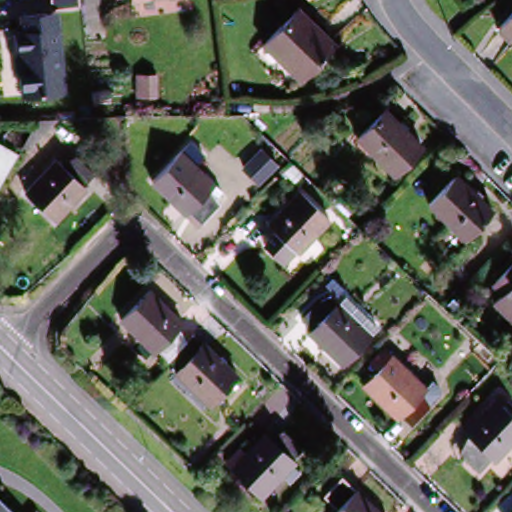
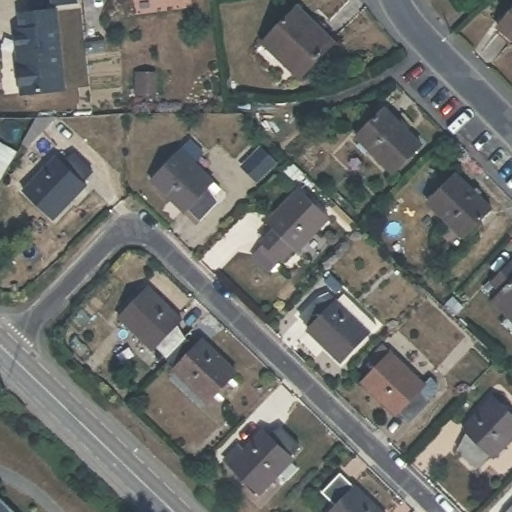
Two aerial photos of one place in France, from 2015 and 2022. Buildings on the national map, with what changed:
unchanged [(140,0),(149,0),(141,1),(140,0)]
unchanged [(268,35),(306,6),(335,45),(298,74),(268,35)]
unchanged [(512,8),(512,36),(498,24),(512,8)]
unchanged [(59,14),(67,93),(26,97),(25,92),(21,88),(20,74),(22,71),(19,35),(26,34),(24,19),(59,14)]
unchanged [(365,135),(389,110),(423,144),(400,169),(365,135)]
unchanged [(7,151),(0,162),(0,147),(7,151)]
unchanged [(221,199),(201,220),(155,174),(182,147),(222,183),(215,192),(221,199)]
unchanged [(69,155),(88,172),(77,182),(84,190),(55,219),(25,192),(54,162),(58,165),(69,155)]
unchanged [(493,209),(466,239),(427,203),(455,172),(493,209)]
unchanged [(283,265),(263,242),(275,231),(270,225),(302,196),(331,223),(301,253),(297,250),(283,265)]
unchanged [(512,323),(492,305),(500,297),(488,286),(509,264),(512,266),(512,323)]
unchanged [(150,346),(144,351),(113,322),(142,292),(172,321),(166,328),(182,343),(166,360),(150,346)]
unchanged [(303,335),(308,328),(297,318),(314,301),(318,304),(328,294),(337,302),(346,293),(378,325),(337,367),(303,335)]
unchanged [(166,360),(182,343),(195,353),(200,348),(234,378),(207,408),(172,377),(178,371),(166,360)]
unchanged [(428,401),(408,423),(397,412),(392,416),(360,385),(390,352),(422,382),(417,391),(428,401)]
unchanged [(512,432),(492,453),(484,447),(471,461),(453,442),(462,432),(457,426),(490,392),(512,414),(512,432)]
unchanged [(284,478),(277,473),(258,490),(231,462),(259,432),(269,438),(279,428),(296,445),(288,455),(298,466),(284,478)]
unchanged [(337,502),(326,492),(344,474),(383,512),(327,512),(337,502)]
unchanged [(12,512),(0,512),(0,501),(12,512)]
unchanged [(512,504),(512,512),(504,512),(512,504)]

